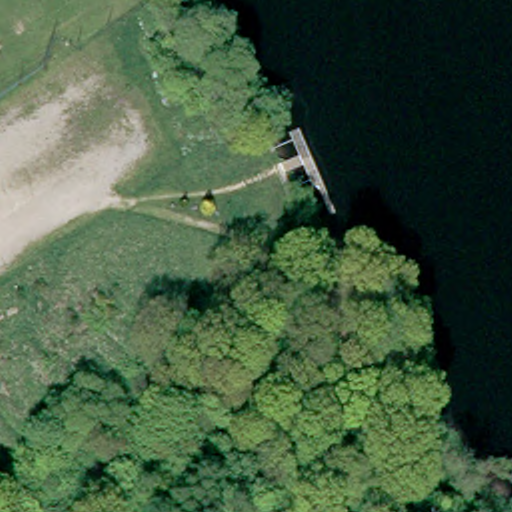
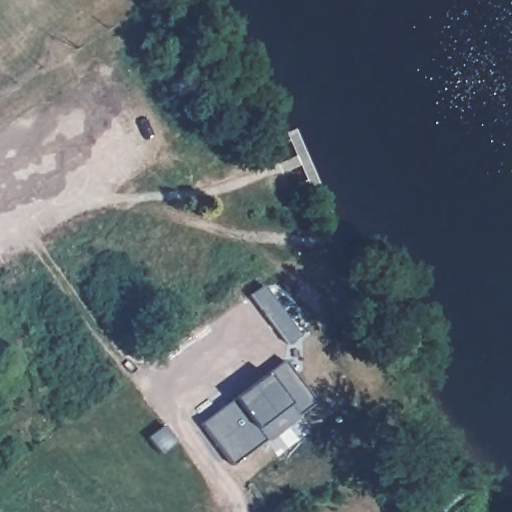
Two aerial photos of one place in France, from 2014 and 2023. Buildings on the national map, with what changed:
new [(261,286),(298,336),(285,345),(249,295),(261,286)]
new [(282,360),(314,402),(296,416),(287,405),(256,428),(264,440),(231,465),(199,423),(282,360)]

